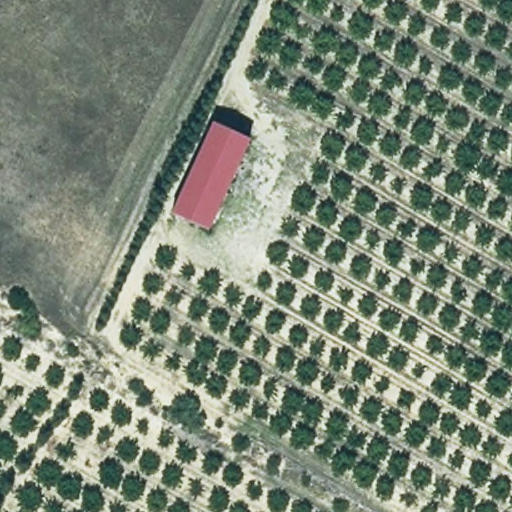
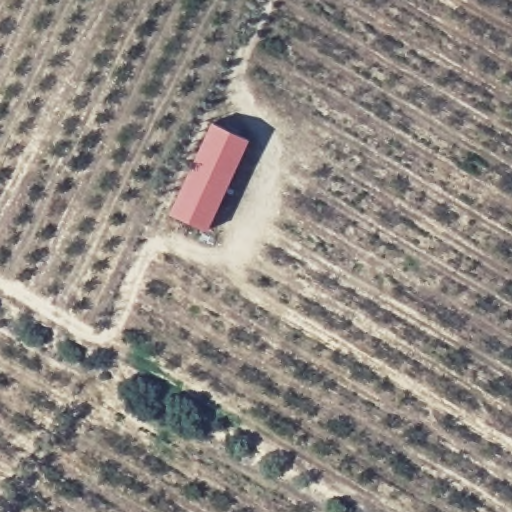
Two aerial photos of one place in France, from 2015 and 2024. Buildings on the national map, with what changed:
unchanged [(246,142),(202,232),(166,215),(210,125),(246,142)]

